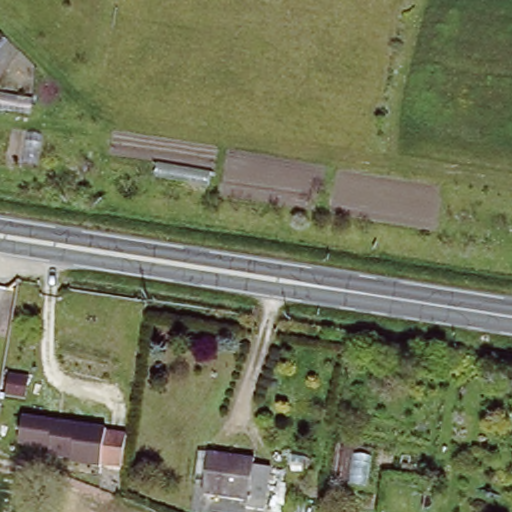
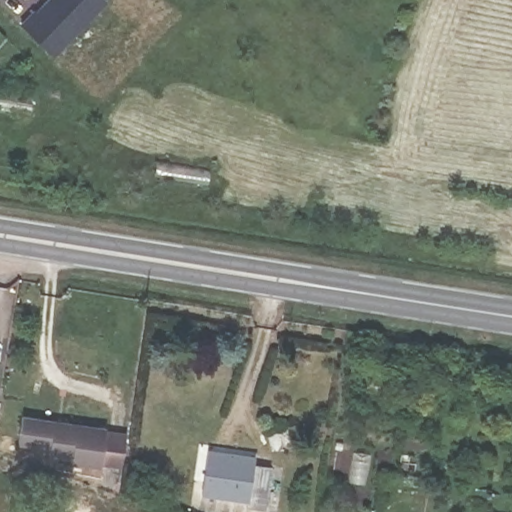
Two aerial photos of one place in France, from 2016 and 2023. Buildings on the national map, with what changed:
new [(32,11),(33,12),(44,0),(102,0),(53,55),(19,24),(32,11)]
unchanged [(99,431),(99,433),(118,437),(113,470),(61,464),(62,456),(38,453),(39,445),(10,441),(14,415),(99,431)]
unchanged [(258,466),(257,472),(274,475),(270,505),(253,502),(253,507),(209,500),(211,487),(202,485),(206,457),(258,466)]

